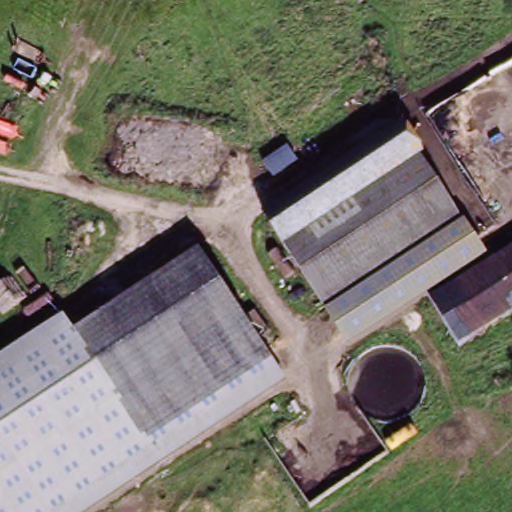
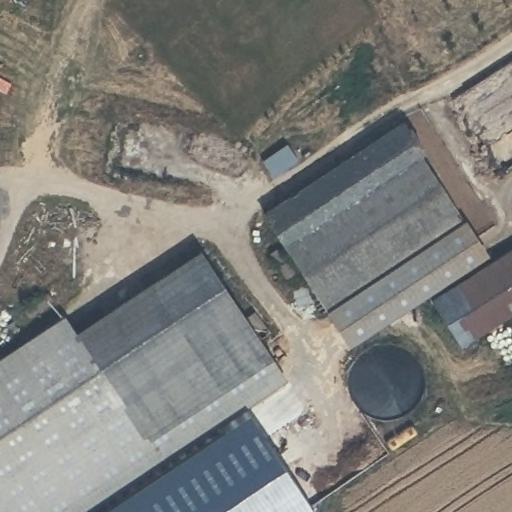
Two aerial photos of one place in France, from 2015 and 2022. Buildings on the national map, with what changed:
unchanged [(262,211),(391,126),(411,156),(281,243),(262,211)]
unchanged [(464,226),(480,250),(343,340),(327,313),(296,267),(281,243),(411,156),(435,181),(464,226)]
unchanged [(458,349),(429,303),(512,250),(512,315),(458,349)]
unchanged [(70,340),(145,290),(198,256),(239,313),(282,379),(81,512),(0,512),(0,360),(59,322),(70,340)]
new [(310,512),(118,512),(253,424),(310,512)]

